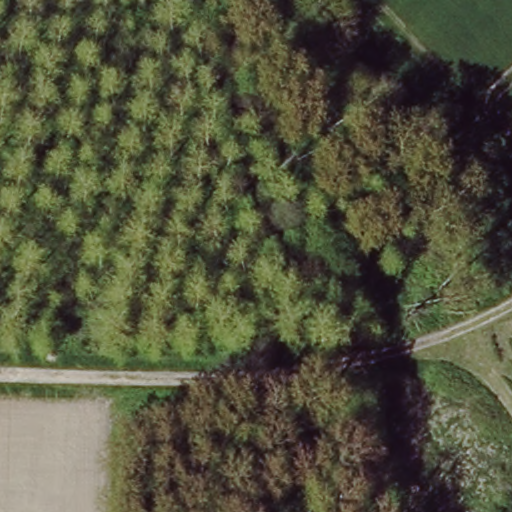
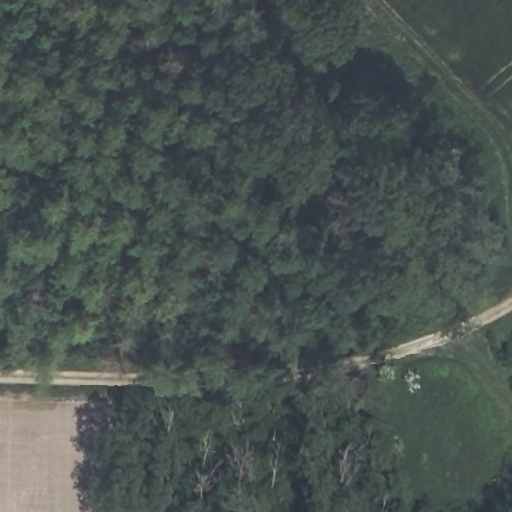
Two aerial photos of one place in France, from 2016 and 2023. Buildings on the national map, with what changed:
[]

